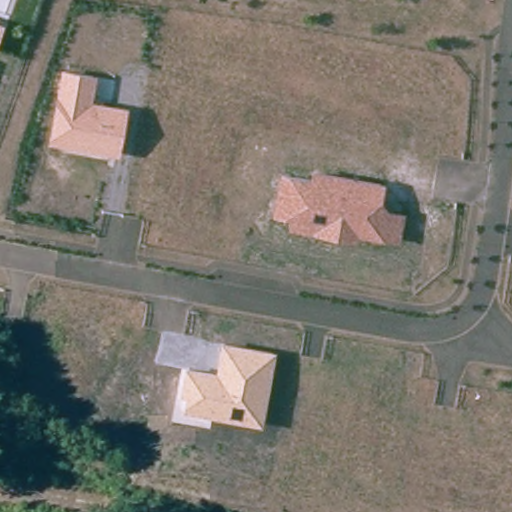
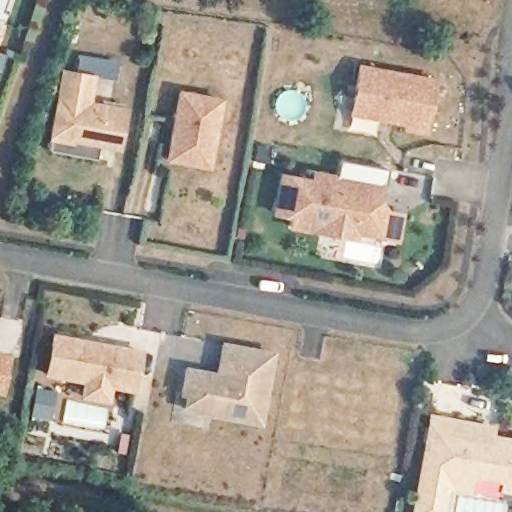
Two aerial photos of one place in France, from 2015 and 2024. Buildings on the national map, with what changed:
unchanged [(5,23),(0,37),(0,22),(5,23)]
new [(403,130),(405,124),(350,115),(359,65),(436,77),(428,134),(403,130)]
unchanged [(47,142),(60,68),(97,74),(93,100),(129,107),(120,155),(47,142)]
new [(180,90),(225,99),(212,168),(168,160),(180,90)]
unchanged [(280,172),(310,177),(312,169),(385,182),(382,201),(386,208),(404,213),(401,242),(381,239),(356,236),(355,241),(287,228),(289,217),(273,214),(280,172)]
new [(82,398),(85,382),(45,376),(53,333),(143,349),(135,392),(112,388),(110,403),(82,398)]
unchanged [(185,411),(179,396),(185,365),(216,371),(220,342),(275,352),(263,426),(185,411)]
new [(10,354),(4,394),(0,394),(0,352),(10,354)]
new [(501,483),(474,479),(472,493),(448,490),(444,512),(412,512),(429,413),(494,425),(492,434),(512,438),(512,493),(500,492),(501,483)]

